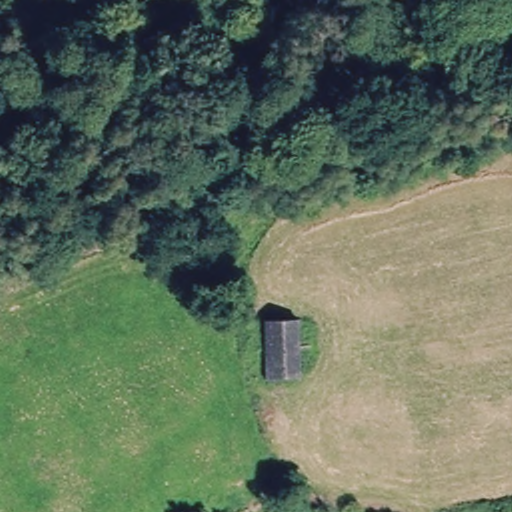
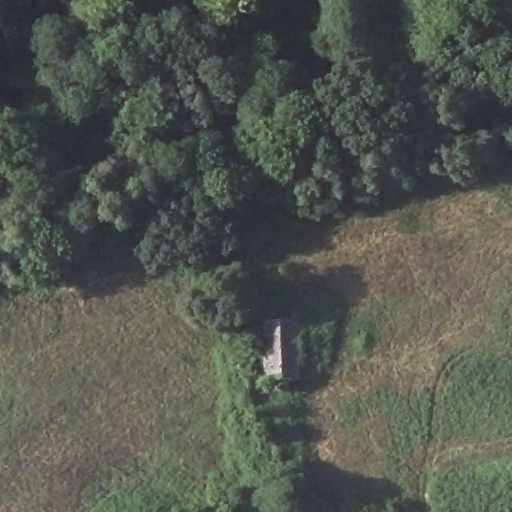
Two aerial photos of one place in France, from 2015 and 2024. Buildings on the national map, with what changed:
unchanged [(296,382),(259,381),(262,320),(297,323),(296,348),(296,382)]

